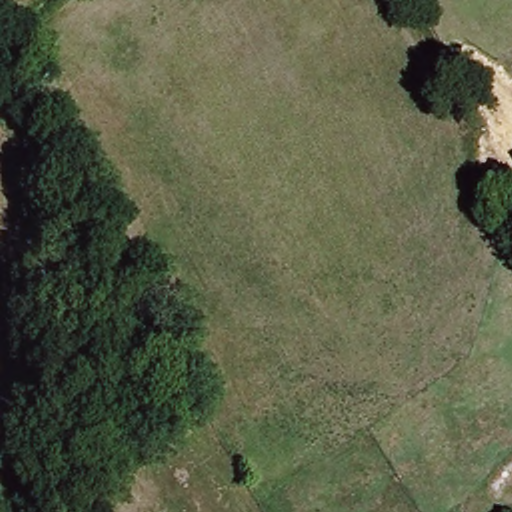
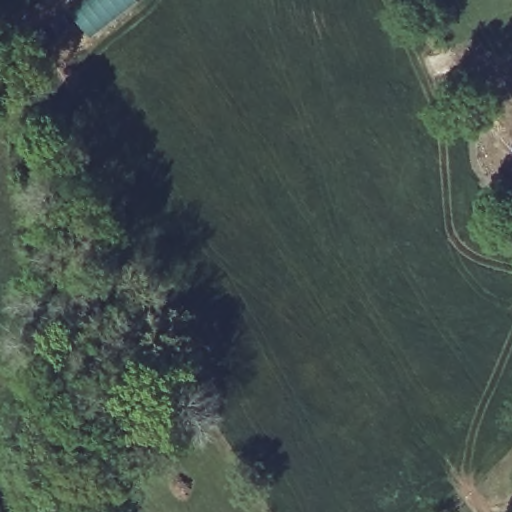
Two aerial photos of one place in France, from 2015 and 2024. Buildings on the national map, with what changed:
new [(89,36),(86,32),(95,26),(80,6),(89,0),(135,0),(136,1),(89,36)]

